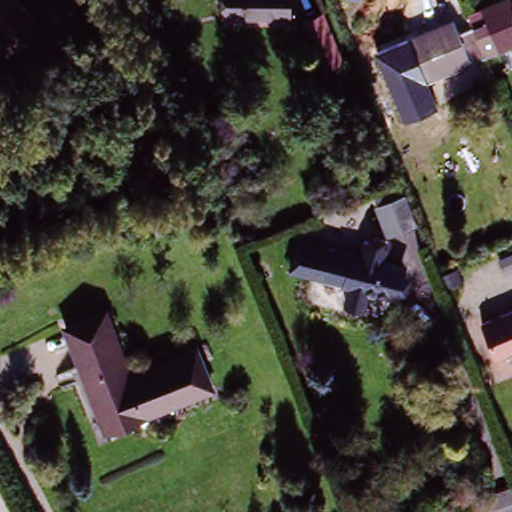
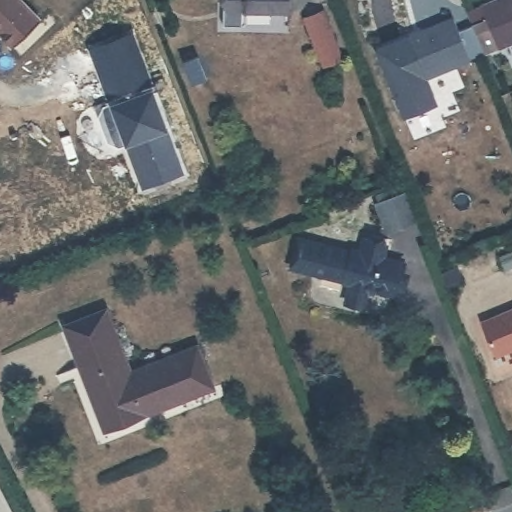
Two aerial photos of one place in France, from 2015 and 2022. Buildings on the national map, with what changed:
unchanged [(18,40),(0,17),(0,0),(24,0),(41,21),(18,40)]
unchanged [(227,0),(284,0),(284,13),(226,10),(227,0)]
unchanged [(404,126),(376,57),(459,20),(465,32),(478,27),(473,13),(487,7),(505,0),(512,0),(512,45),(489,55),(427,83),(436,111),(404,126)]
unchanged [(330,28),(349,76),(331,84),(312,35),(330,28)]
new [(114,111),(122,109),(101,48),(135,36),(173,130),(136,144),(127,148),(118,143),(109,121),(114,111)]
new [(173,130),(190,175),(154,189),(136,144),(173,130)]
unchanged [(380,209),(384,207),(380,199),(397,192),(401,200),(409,196),(420,222),(391,235),(380,209)]
unchanged [(371,284),(366,302),(349,298),(354,279),(310,267),(295,263),(302,235),(317,239),(363,251),(367,236),(389,242),(385,254),(407,259),(398,291),(371,284)]
unchanged [(512,304),(512,343),(498,349),(484,315),(512,304)]
unchanged [(106,428),(65,329),(109,311),(132,368),(192,345),(209,387),(106,428)]

